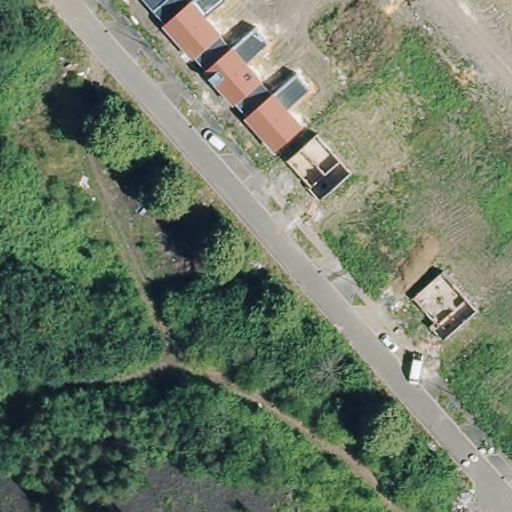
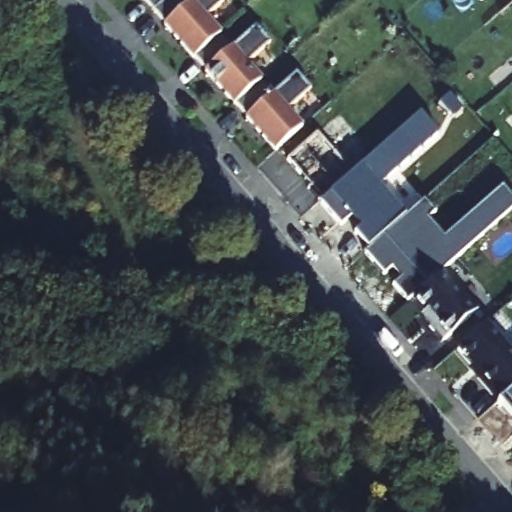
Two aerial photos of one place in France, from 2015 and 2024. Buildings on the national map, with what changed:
unchanged [(244,120),(246,118),(235,105),(232,107),(201,74),(205,71),(195,59),(193,61),(162,28),(164,26),(142,0),(188,0),(190,3),(194,0),(223,0),(204,16),(221,35),(232,48),(255,29),(267,45),(247,63),(272,95),(297,75),(309,92),(287,111),(305,128),(278,154),(244,120)]
new [(420,113),(438,133),(380,186),(405,216),(367,249),(354,234),(360,228),(350,217),(340,225),(319,202),(352,174),(420,113)]
unchanged [(352,174),(319,202),(309,190),(312,187),(287,160),(317,134),(352,174)]
new [(412,299),(409,302),(394,286),(401,279),(391,268),(384,274),(364,253),(367,249),(405,216),(423,200),(435,212),(427,219),(444,238),(502,186),(512,198),(512,209),(442,274),(412,299)]
unchanged [(442,342),(429,327),(434,322),(412,299),(442,274),(477,312),(442,342)]
new [(512,390),(498,403),(469,370),(472,367),(457,350),(487,323),(512,351),(512,390)]
new [(512,390),(512,409),(503,399),(512,390)]

